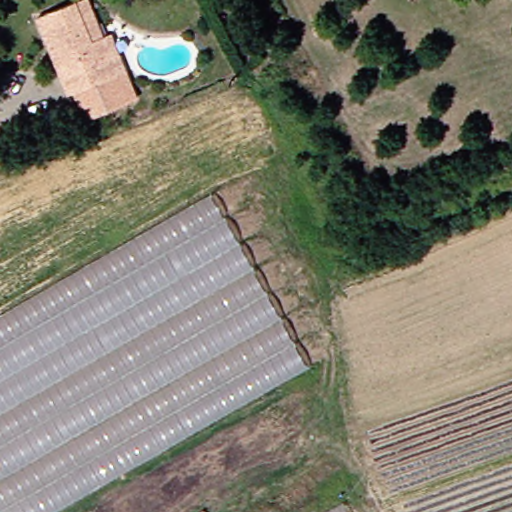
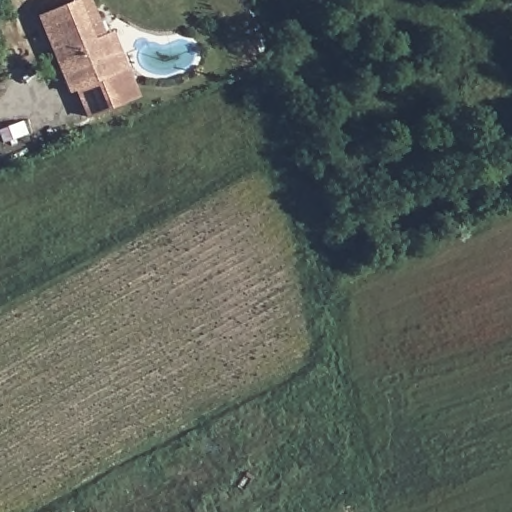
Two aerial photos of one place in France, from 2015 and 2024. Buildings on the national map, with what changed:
unchanged [(49,16),(88,0),(99,0),(113,35),(120,32),(135,69),(147,96),(99,117),(87,89),(80,92),(73,73),(62,49),(49,16)]
demolished [(308,367),(58,512),(0,512),(0,315),(212,193),(308,367)]
demolished [(360,512),(333,512),(353,501),(360,512)]

